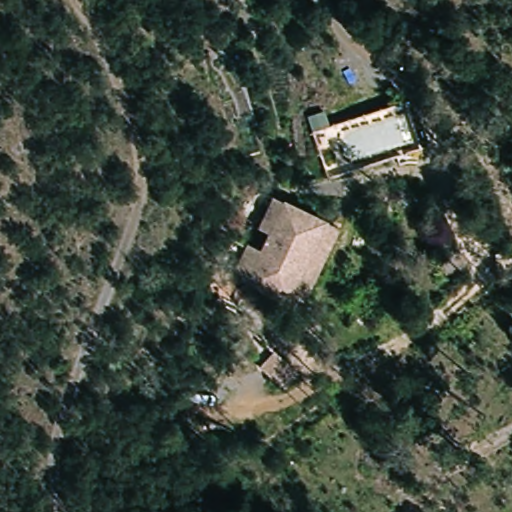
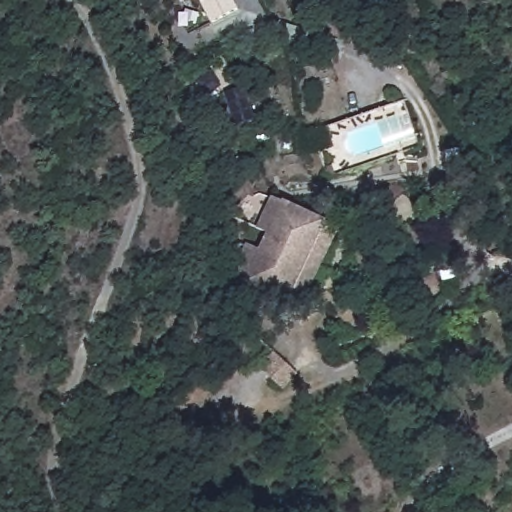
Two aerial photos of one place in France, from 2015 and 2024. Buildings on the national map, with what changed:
new [(209,0),(231,0),(235,8),(209,23),(200,6),(209,0)]
unchanged [(233,276),(248,246),(257,227),(252,225),(246,222),(262,190),(267,192),(315,216),(328,222),(308,262),(288,303),(275,297),(233,276)]
unchanged [(284,368),(270,383),(247,360),(260,346),(284,368)]

